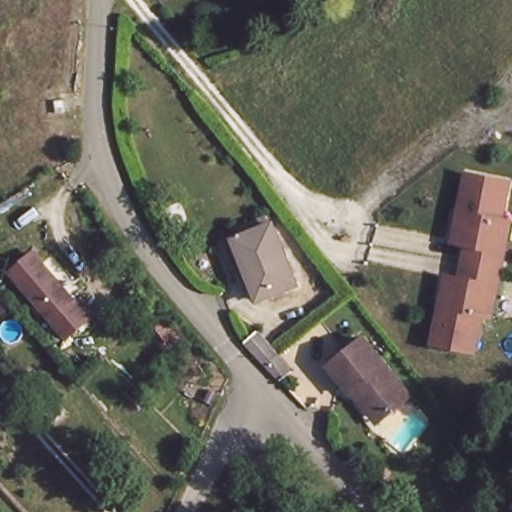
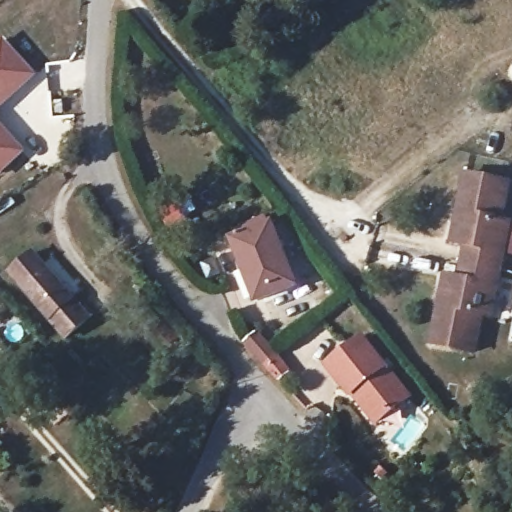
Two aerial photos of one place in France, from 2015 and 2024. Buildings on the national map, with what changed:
new [(3,36),(38,74),(0,111),(0,39),(3,36)]
new [(26,150),(0,173),(0,121),(26,150)]
unchanged [(448,276),(459,277),(465,244),(455,242),(469,168),(512,174),(512,208),(510,216),(512,217),(512,242),(497,321),(489,321),(485,355),(432,350),(448,276)]
unchanged [(295,276),(252,292),(228,230),(270,215),(295,276)]
unchanged [(11,275),(32,257),(74,305),(88,321),(66,340),(52,323),(11,275)]
unchanged [(350,389),(346,386),(326,361),(361,334),(407,392),(381,412),(374,418),(350,389)]
unchanged [(275,378),(288,366),(304,384),(291,395),(275,378)]

